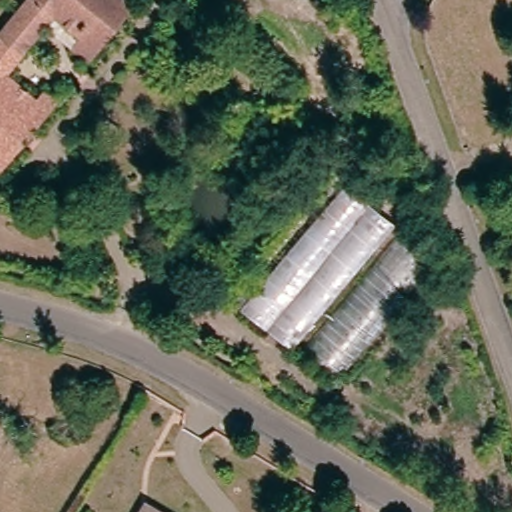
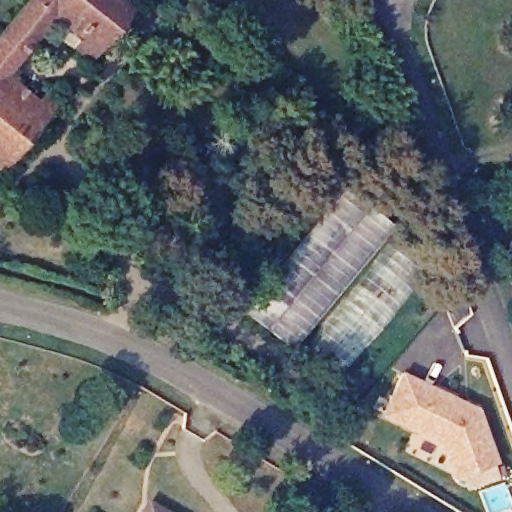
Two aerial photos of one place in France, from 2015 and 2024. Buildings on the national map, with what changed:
unchanged [(94,54),(81,45),(88,37),(61,13),(11,71),(45,98),(49,91),(61,99),(5,164),(0,160),(0,41),(33,0),(130,0),(135,4),(94,54)]
unchanged [(327,375),(239,299),(341,181),(390,223),(383,231),(422,265),(327,375)]
new [(440,440),(417,430),(381,414),(400,372),(456,396),(466,401),(476,405),(496,457),(460,471),(452,474),(440,440)]
unchanged [(148,505),(159,512),(144,512),(148,505)]

